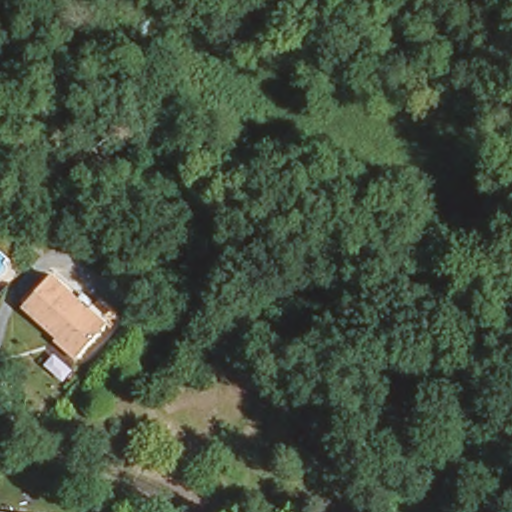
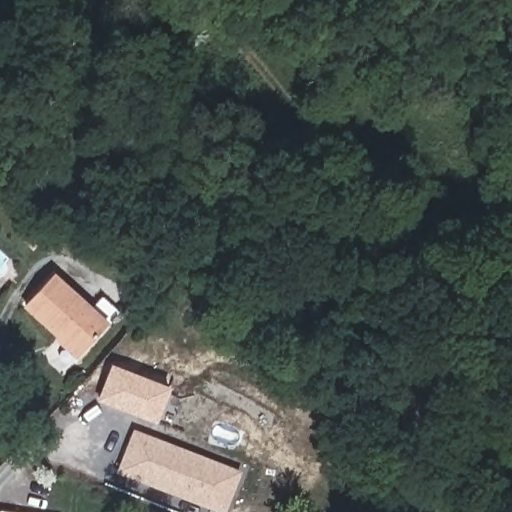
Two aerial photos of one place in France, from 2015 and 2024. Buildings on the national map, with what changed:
unchanged [(52,338),(56,333),(20,303),(46,268),(104,315),(78,348),(73,355),(52,338)]
new [(112,364),(171,387),(157,424),(97,401),(112,364)]
new [(134,428),(243,471),(226,512),(219,512),(117,472),(134,428)]
unchanged [(3,506),(54,512),(2,512),(3,506)]

